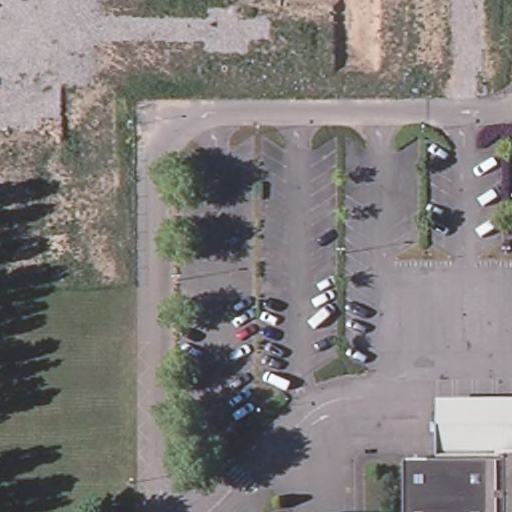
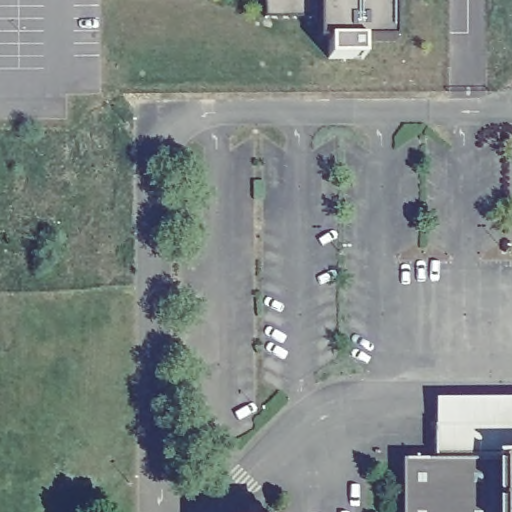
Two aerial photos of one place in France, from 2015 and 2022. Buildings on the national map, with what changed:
new [(328,57),(328,39),(318,37),(318,16),(267,16),(266,0),(393,0),(393,40),(362,40),(362,57),(328,57)]
unchanged [(512,401),(512,460),(507,460),(435,461),(435,401),(512,401)]
unchanged [(435,461),(507,460),(507,512),(406,512),(406,461),(435,461)]
unchanged [(512,460),(512,512),(507,512),(507,460),(512,460)]

